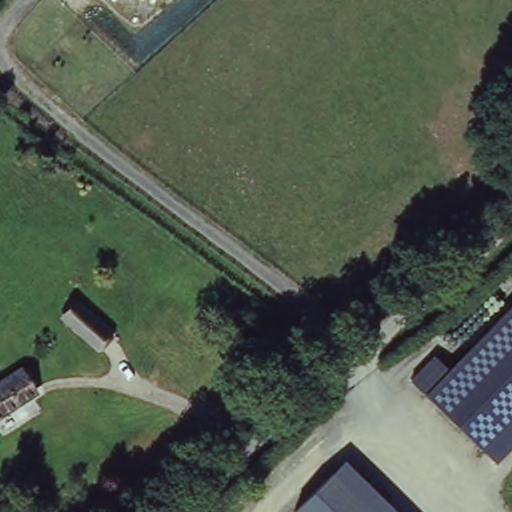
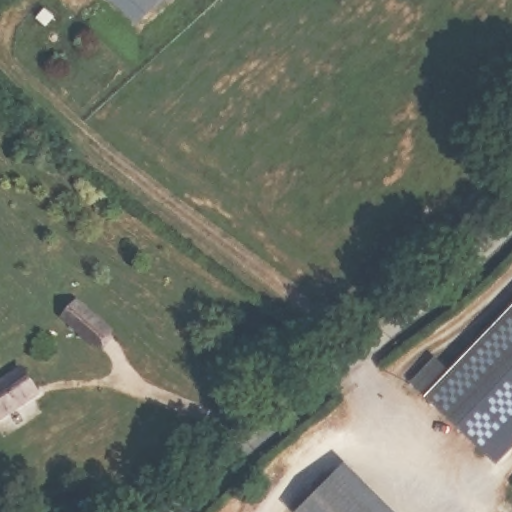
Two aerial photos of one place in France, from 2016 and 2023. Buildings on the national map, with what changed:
new [(158,3),(137,24),(112,0),(155,0),(158,3)]
unchanged [(80,297),(115,333),(96,351),(61,317),(80,297)]
unchanged [(448,369),(512,305),(512,444),(495,461),(410,380),(434,357),(448,369)]
unchanged [(21,366),(40,395),(0,420),(0,379),(21,366)]
unchanged [(344,461),(397,512),(296,512),(294,511),(344,461)]

